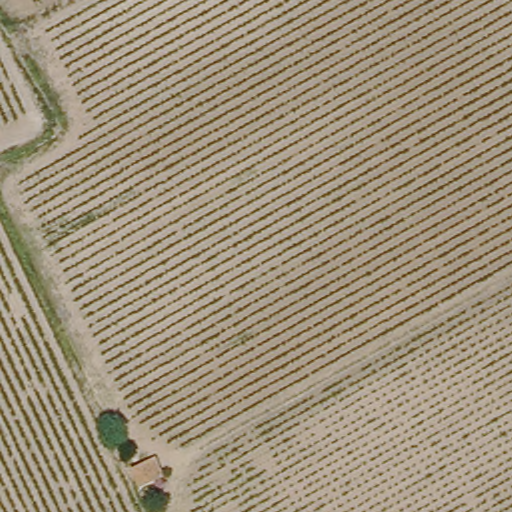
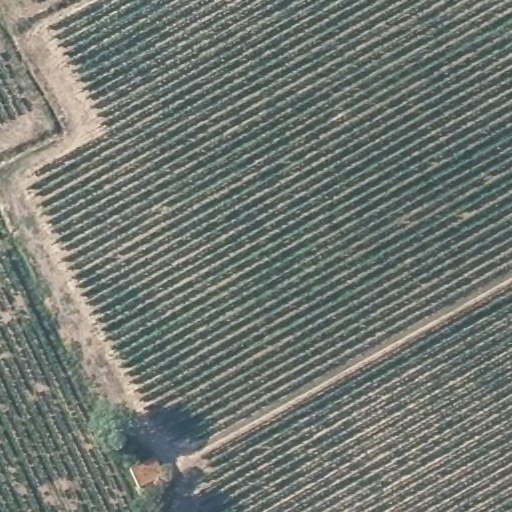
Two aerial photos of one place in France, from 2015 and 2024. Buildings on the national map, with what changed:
unchanged [(175,483),(147,497),(137,476),(167,463),(175,483)]

